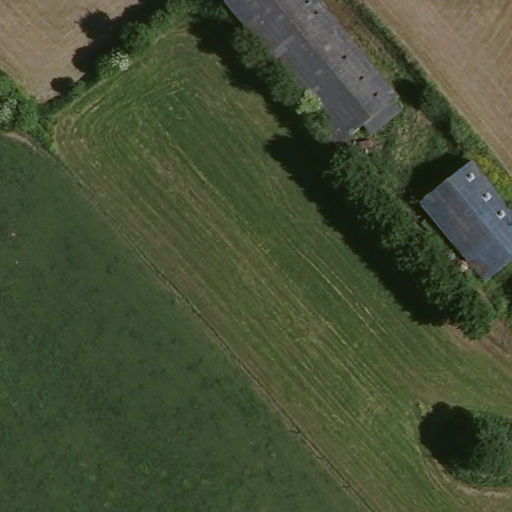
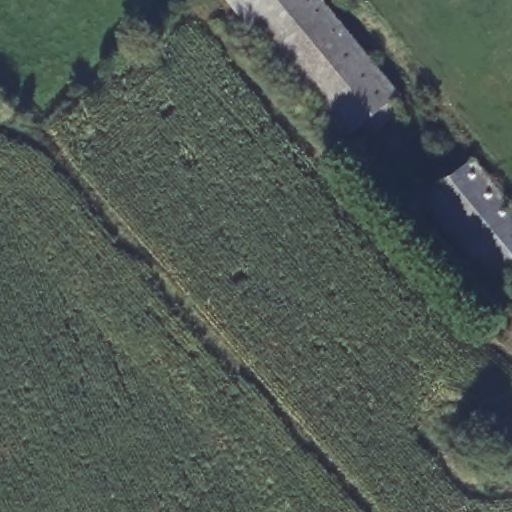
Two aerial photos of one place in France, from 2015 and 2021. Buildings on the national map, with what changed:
unchanged [(236,0),(320,0),(402,93),(399,97),(409,108),(379,132),(368,122),(344,145),(324,125),(331,120),(230,5),(236,0)]
unchanged [(476,160),(512,204),(512,260),(489,279),(425,201),(476,160)]

